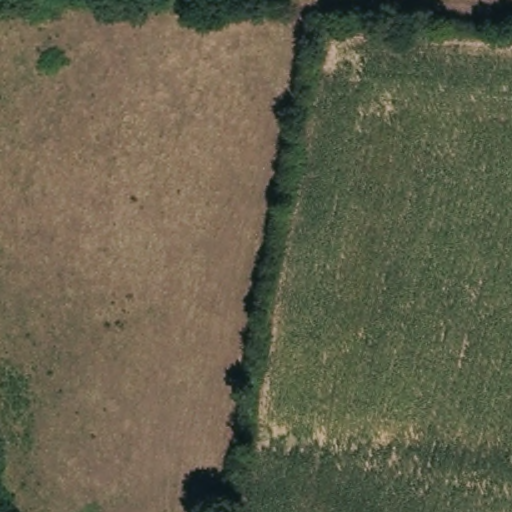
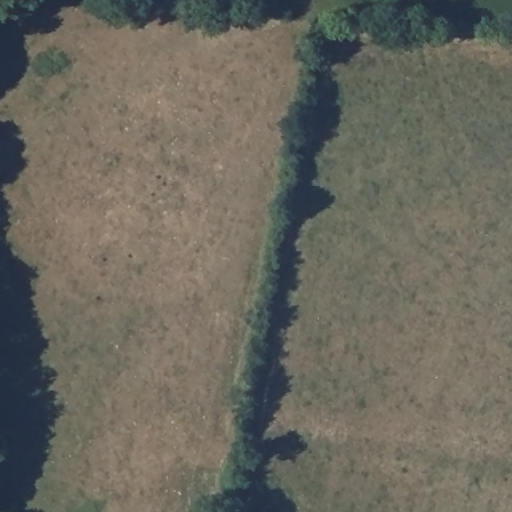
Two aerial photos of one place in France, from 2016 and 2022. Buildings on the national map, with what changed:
[]

